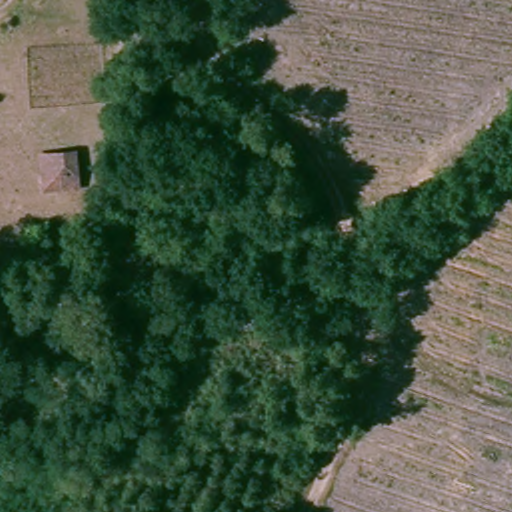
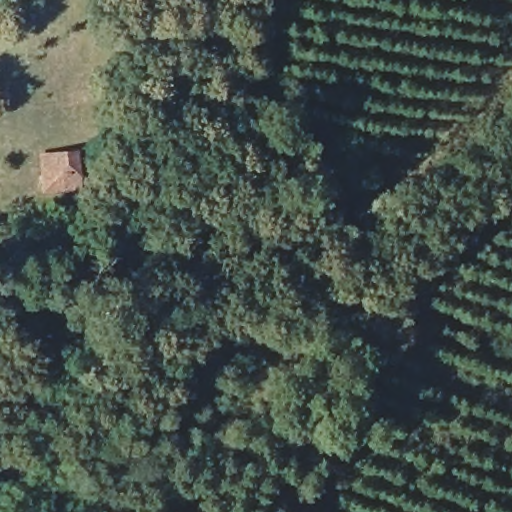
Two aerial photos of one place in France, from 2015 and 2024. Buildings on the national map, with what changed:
unchanged [(74,145),(75,179),(43,180),(42,146),(74,145)]

